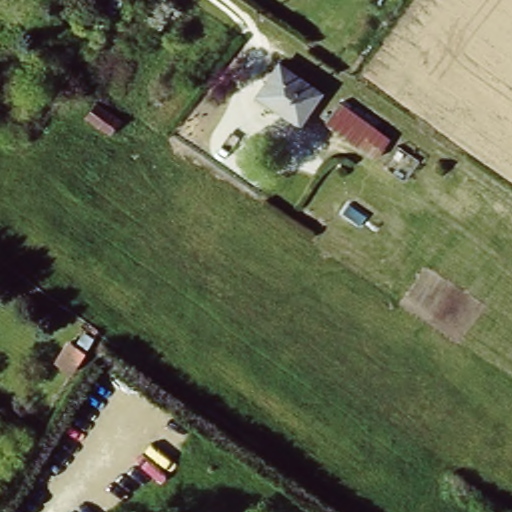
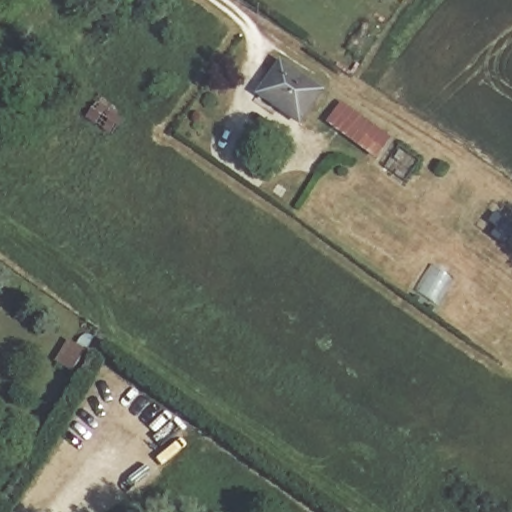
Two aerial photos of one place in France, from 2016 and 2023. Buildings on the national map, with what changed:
unchanged [(93,9),(98,0),(132,0),(117,25),(93,9)]
unchanged [(328,92),(307,122),(265,94),(287,63),(328,92)]
unchanged [(60,360),(73,337),(87,345),(73,368),(60,360)]

